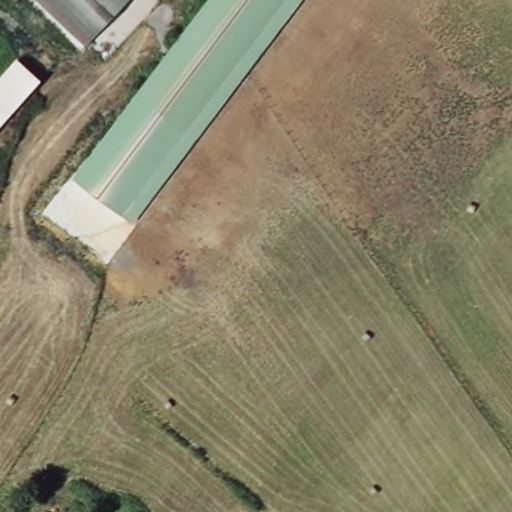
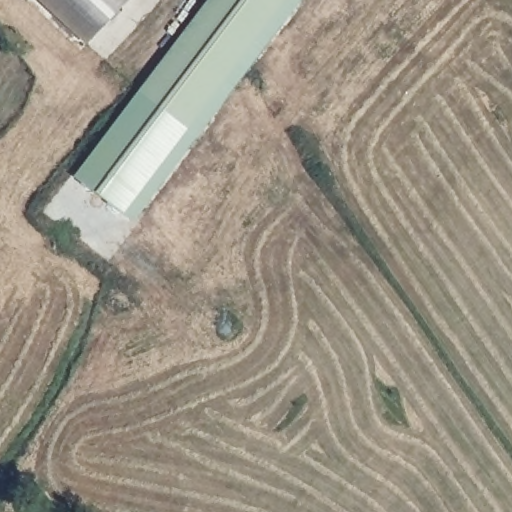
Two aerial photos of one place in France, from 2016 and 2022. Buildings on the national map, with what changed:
unchanged [(91,41),(49,0),(130,0),(91,41)]
unchanged [(133,223),(71,177),(138,89),(186,127),(284,0),(302,0),(133,223)]
unchanged [(205,0),(284,0),(186,127),(138,89),(205,0)]
demolished [(46,77),(0,131),(0,77),(19,55),(46,77)]

